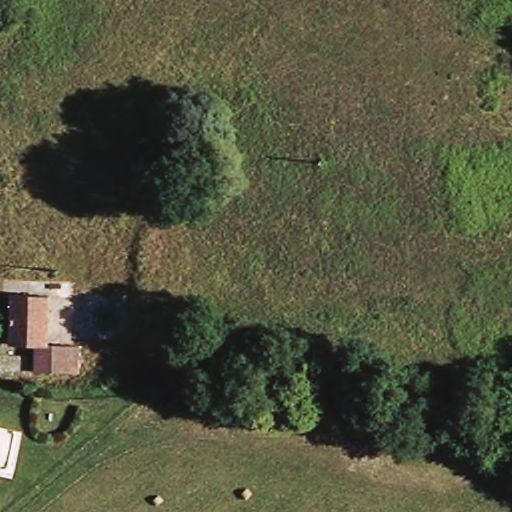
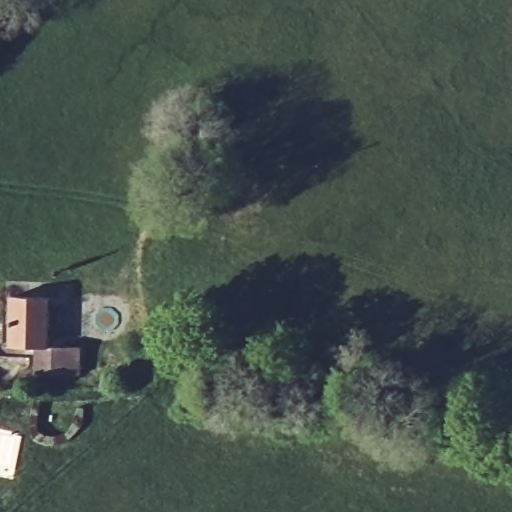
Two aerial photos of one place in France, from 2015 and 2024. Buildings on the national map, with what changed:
unchanged [(47,297),(45,346),(5,345),(7,295),(47,297)]
unchanged [(74,371),(50,369),(50,372),(33,368),(36,351),(50,353),(50,347),(75,349),(74,371)]

